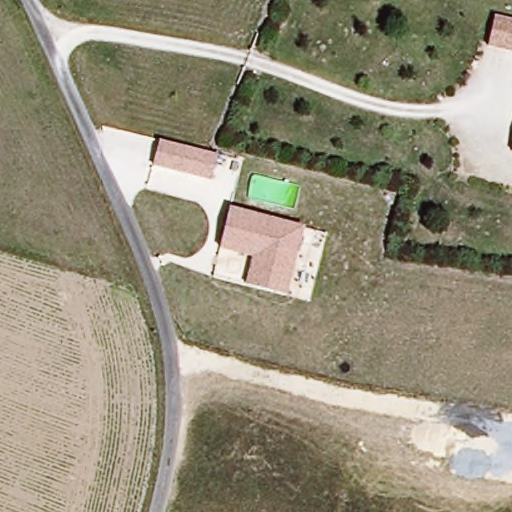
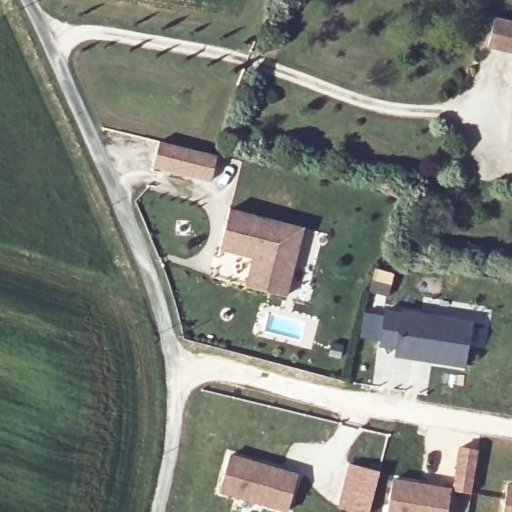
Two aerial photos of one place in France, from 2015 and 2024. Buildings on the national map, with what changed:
unchanged [(485,48),(488,23),(489,17),(512,23),(512,55),(485,48)]
unchanged [(508,157),(512,137),(512,158),(508,157)]
unchanged [(162,172),(166,145),(226,158),(220,185),(162,172)]
unchanged [(289,297),(251,289),(256,260),(223,250),(231,210),(304,229),(289,297)]
new [(378,346),(383,313),(399,315),(400,313),(471,324),(464,367),(432,362),(394,356),(395,349),(378,346)]
new [(458,445),(479,449),(471,494),(451,490),(458,445)]
new [(229,452),(298,472),(286,512),(284,512),(217,492),(229,452)]
new [(347,462),(379,470),(369,512),(357,512),(336,506),(347,462)]
new [(391,477),(451,487),(447,512),(385,512),(391,477)]
new [(506,482),(512,483),(512,512),(502,512),(506,482)]

